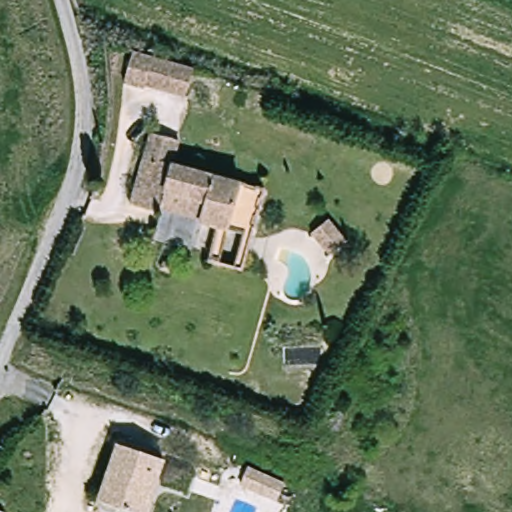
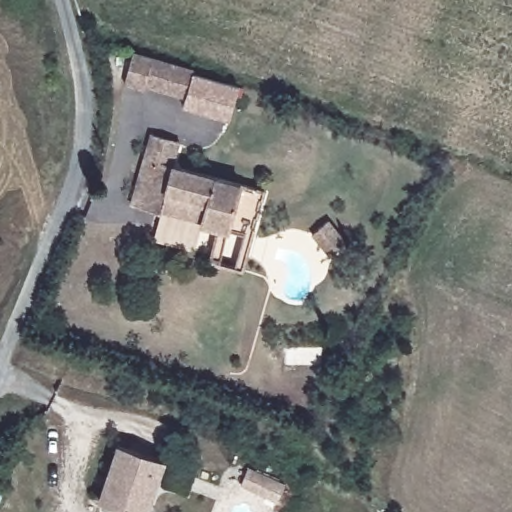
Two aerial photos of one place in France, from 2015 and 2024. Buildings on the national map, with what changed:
unchanged [(195,70),(186,96),(147,84),(146,87),(125,81),(126,77),(135,51),(195,70)]
new [(230,120),(183,107),(186,96),(193,74),(239,86),(230,120)]
unchanged [(247,270),(213,260),(222,228),(207,224),(208,220),(167,209),(166,213),(134,204),(148,156),(155,132),(185,141),(178,165),(270,191),(247,270)]
unchanged [(337,220),(357,242),(342,256),(321,234),(337,220)]
unchanged [(166,462),(148,512),(128,512),(98,501),(118,445),(166,462)]

